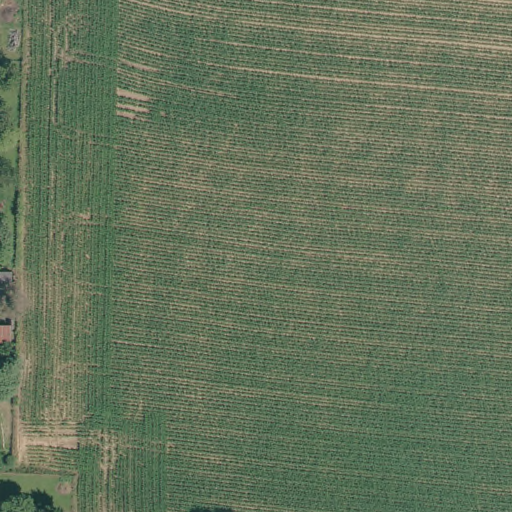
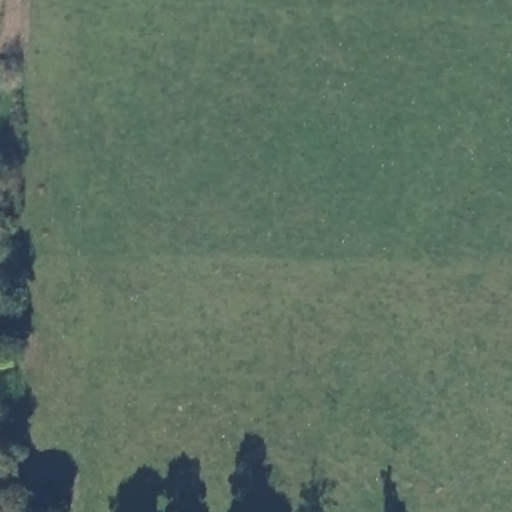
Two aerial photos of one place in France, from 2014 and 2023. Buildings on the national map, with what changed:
unchanged [(15,269),(14,293),(2,292),(3,269),(15,269)]
unchanged [(14,325),(13,342),(0,342),(0,324),(14,325)]

